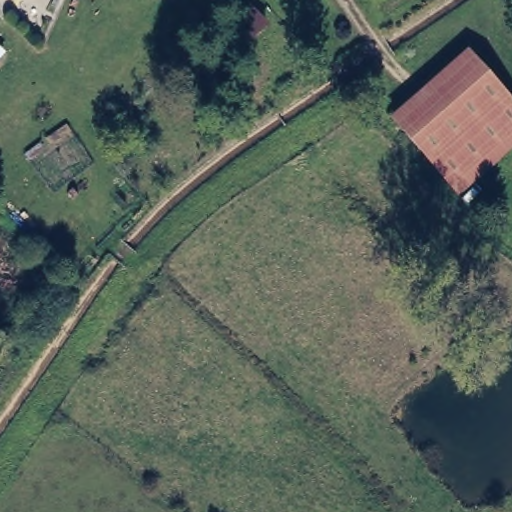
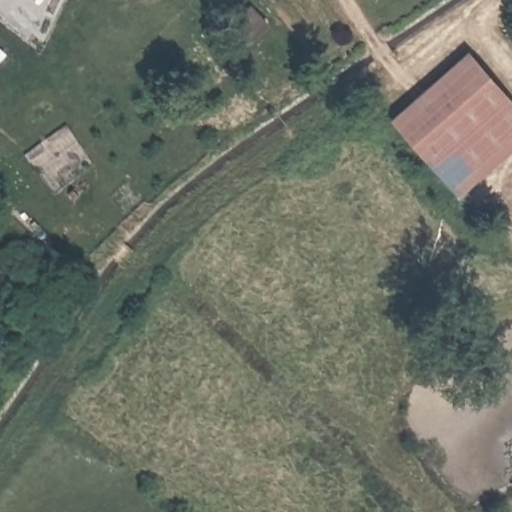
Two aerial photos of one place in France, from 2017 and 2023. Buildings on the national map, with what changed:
unchanged [(460,195),(394,120),(469,53),(512,103),(512,149),(460,195)]

